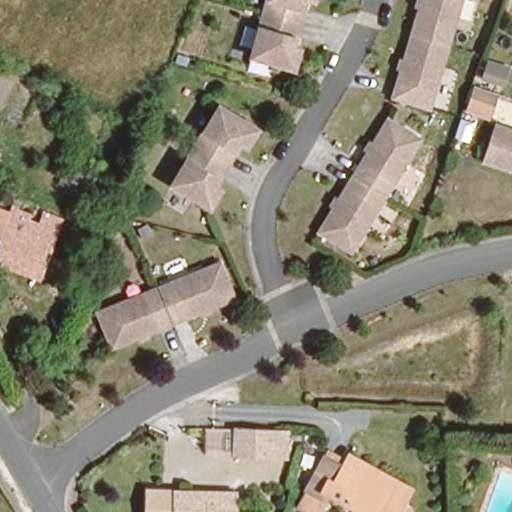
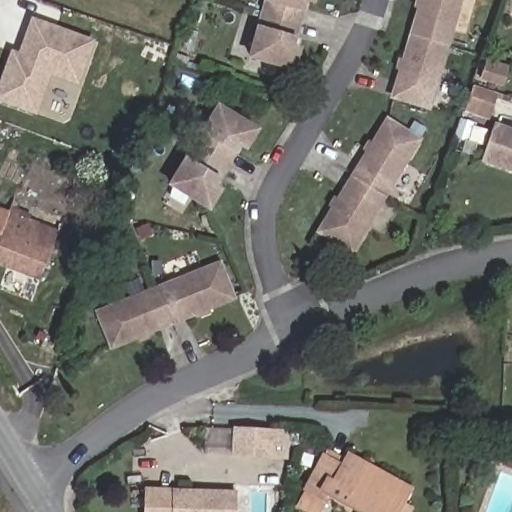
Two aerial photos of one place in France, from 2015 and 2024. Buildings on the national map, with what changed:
unchanged [(254,17),(259,0),(310,0),(309,5),(306,5),(297,30),(254,17)]
unchanged [(442,47),(407,39),(417,0),(454,0),(442,47)]
new [(64,124),(0,102),(0,79),(10,51),(18,51),(31,16),(99,40),(71,120),(64,124)]
unchanged [(271,71),(272,64),(241,57),(248,28),(295,41),(291,49),(301,51),(292,77),(271,71)]
unchanged [(425,110),(389,102),(407,39),(442,47),(425,110)]
unchanged [(464,113),(475,84),(482,60),(508,67),(501,90),(489,125),(464,113)]
unchanged [(242,156),(235,152),(221,171),(187,147),(196,132),(213,102),(256,127),(242,156)]
unchanged [(381,118),(413,138),(382,197),(350,177),(381,118)]
unchanged [(512,175),(477,165),(488,126),(512,133),(512,175)]
unchanged [(89,147),(80,179),(64,173),(72,141),(89,147)]
unchanged [(157,193),(178,158),(216,176),(212,187),(217,191),(202,214),(157,193)]
unchanged [(350,177),(382,197),(351,255),(319,236),(350,177)]
unchanged [(13,217),(19,204),(64,220),(41,280),(0,267),(0,212),(13,217)]
unchanged [(106,353),(93,312),(216,263),(231,302),(106,353)]
unchanged [(199,434),(200,420),(226,422),(225,435),(199,434)]
unchanged [(234,447),(235,422),(273,425),(272,447),(234,447)]
unchanged [(352,512),(350,511),(355,501),(321,479),(306,502),(291,492),(323,440),(344,452),(351,440),(410,481),(400,495),(408,501),(400,512),(352,512)]
unchanged [(173,512),(174,488),(233,490),(231,512),(173,512)]

